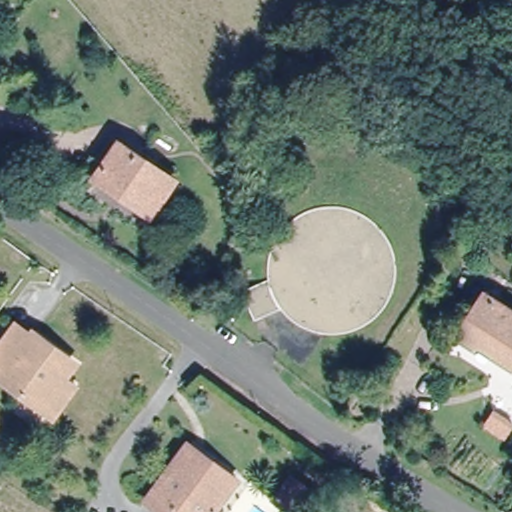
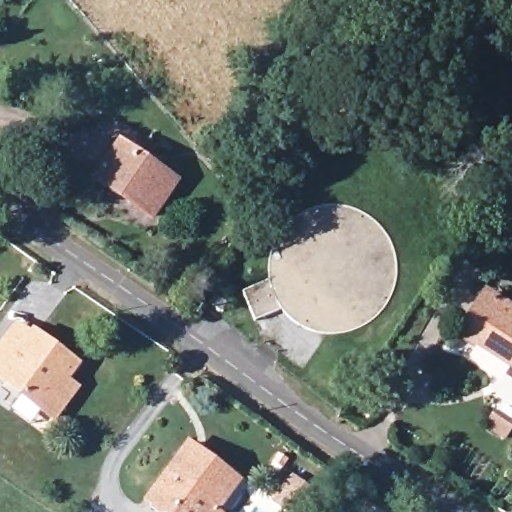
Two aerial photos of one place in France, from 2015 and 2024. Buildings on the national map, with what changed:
unchanged [(172,182),(149,217),(92,178),(116,143),(136,157),(172,182)]
unchanged [(468,338),(466,342),(451,333),(478,291),(512,312),(512,353),(506,362),(468,338)]
unchanged [(57,417),(45,407),(0,376),(0,350),(16,326),(32,337),(35,333),(49,343),(46,347),(57,355),(60,352),(76,362),(64,380),(77,389),(57,417)]
unchanged [(512,427),(506,437),(488,427),(497,412),(512,421),(512,427)]
unchanged [(188,447),(190,445),(237,479),(235,482),(213,512),(159,512),(147,503),(188,447)]
unchanged [(313,492),(300,512),(280,497),(295,478),(313,492)]

